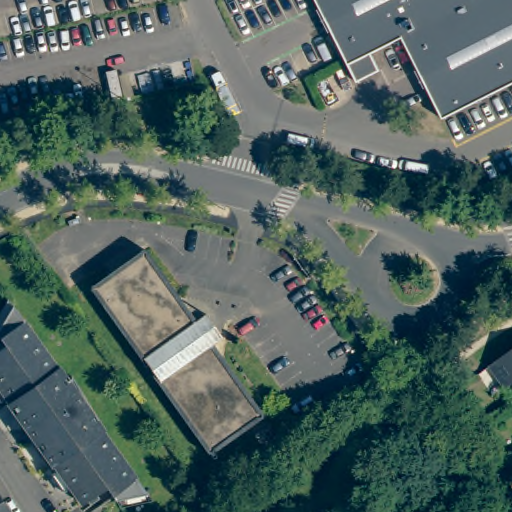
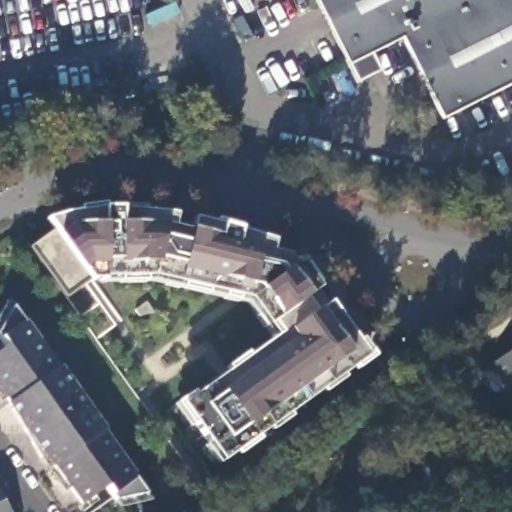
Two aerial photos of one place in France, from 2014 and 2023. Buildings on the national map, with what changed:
unchanged [(403,36),(350,63),(319,0),(512,0),(512,82),(443,116),(403,36)]
new [(29,247),(58,233),(48,219),(67,213),(80,212),(103,209),(122,209),(175,215),(173,227),(189,231),(190,229),(198,231),(194,218),(222,225),(240,230),(274,241),(272,251),(287,254),(295,265),(300,261),(318,288),(315,290),(326,304),(329,302),(357,342),(361,338),(374,357),(356,370),(353,366),(222,461),(196,424),(191,427),(175,404),(192,391),(195,394),(229,370),(226,367),(246,352),(249,356),(277,336),(268,324),(250,298),(154,276),(104,276),(105,279),(90,279),(89,280),(66,297),(29,247)]
demolished [(93,287),(144,250),(197,324),(209,316),(220,333),(209,340),(262,415),(210,452),(93,287)]
unchanged [(7,398),(9,396),(0,384),(0,336),(1,335),(0,333),(0,311),(8,295),(33,329),(63,371),(68,369),(67,366),(68,366),(98,415),(96,417),(144,483),(113,489),(101,476),(79,493),(41,443),(38,445),(38,448),(37,448),(36,446),(28,432),(20,420),(7,398)]
unchanged [(490,367),(512,352),(512,385),(505,389),(490,367)]
unchanged [(13,512),(0,512),(0,489),(13,512)]

